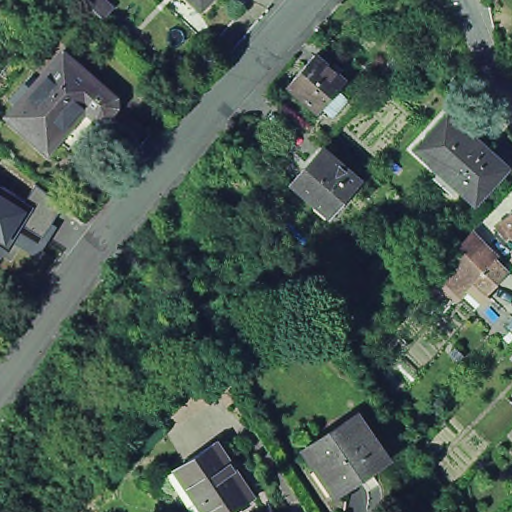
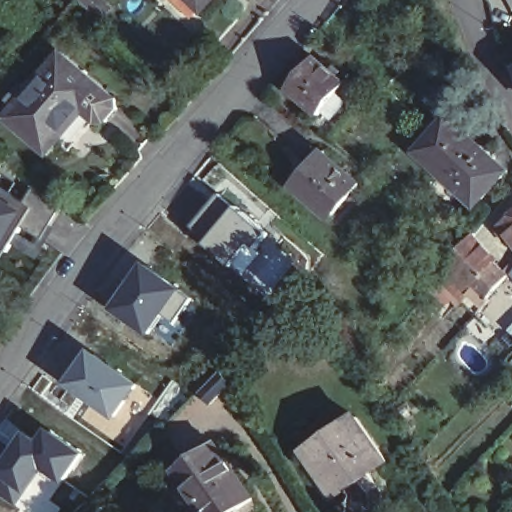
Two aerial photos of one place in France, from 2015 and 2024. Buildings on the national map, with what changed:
unchanged [(106,5),(98,15),(81,0),(101,0),(106,5)]
unchanged [(60,131),(48,145),(8,107),(18,96),(11,91),(24,77),(30,82),(64,44),(117,90),(118,100),(107,112),(103,114),(98,110),(70,141),(60,131)]
unchanged [(338,106),(332,101),(323,111),(294,85),(321,55),(336,67),(341,61),(348,67),(342,73),(351,80),(341,91),(348,96),(338,106)]
unchanged [(425,147),(456,113),(474,130),(443,164),(425,147)]
unchanged [(512,165),(512,169),(482,201),(443,164),(474,130),(512,165)]
unchanged [(366,184),(336,219),(300,187),(331,153),(366,184)]
unchanged [(38,187),(60,205),(38,241),(19,224),(0,245),(0,189),(24,206),(38,187)]
new [(258,250),(263,255),(246,271),(241,276),(203,241),(191,228),(221,194),(236,205),(271,235),(258,250)]
unchanged [(503,226),(509,221),(509,220),(512,217),(512,230),(508,232),(503,226)]
unchanged [(475,234),(478,236),(512,267),(512,274),(494,292),(497,295),(483,309),(467,293),(454,305),(434,285),(465,246),(475,234)]
new [(263,255),(258,250),(271,235),(296,263),(269,291),(246,271),(263,255)]
new [(145,261),(193,297),(173,324),(164,317),(148,336),(110,308),(145,261)]
new [(91,346),(141,385),(114,421),(63,383),(91,346)]
new [(223,368),(234,383),(208,406),(195,394),(223,368)]
unchanged [(314,450),(364,418),(396,465),(343,497),(341,495),(346,493),(329,466),(324,469),(314,450)]
new [(39,437),(48,426),(86,453),(63,483),(45,472),(18,507),(0,495),(0,469),(28,429),(39,437)]
unchanged [(259,498),(236,512),(213,512),(181,463),(221,437),(259,498)]

